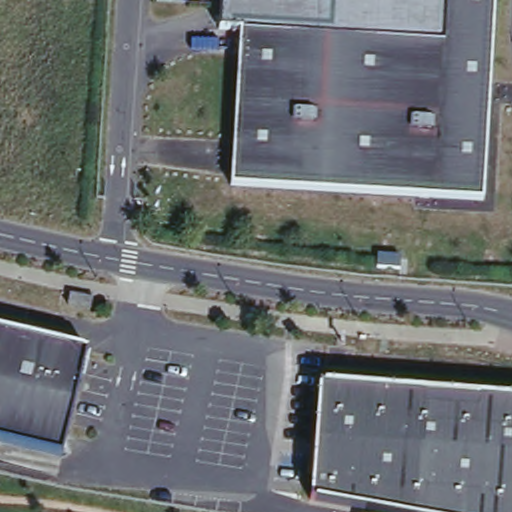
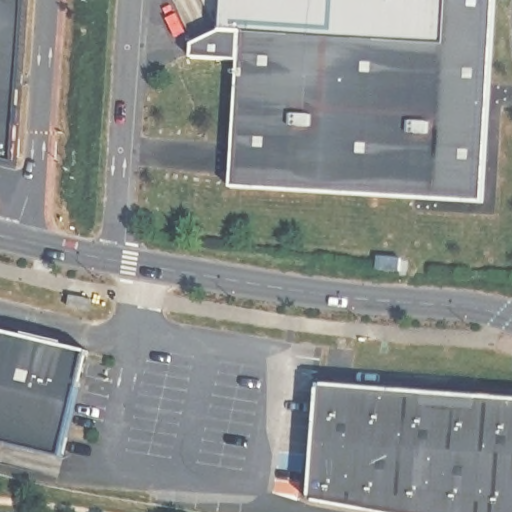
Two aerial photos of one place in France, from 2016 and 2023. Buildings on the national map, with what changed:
new [(22,172),(0,167),(0,0),(32,0),(22,172)]
unchanged [(221,0),(444,0),(440,43),(219,28),(221,0)]
unchanged [(440,43),(444,0),(496,0),(482,202),(230,184),(241,29),(440,43)]
unchanged [(375,257),(406,259),(405,274),(373,270),(375,257)]
unchanged [(75,285),(97,288),(95,300),(74,296),(75,285)]
unchanged [(65,446),(0,434),(0,322),(86,338),(65,446)]
unchanged [(422,402),(422,412),(471,415),(471,405),(512,408),(512,512),(343,512),(307,506),(314,394),(422,402)]

